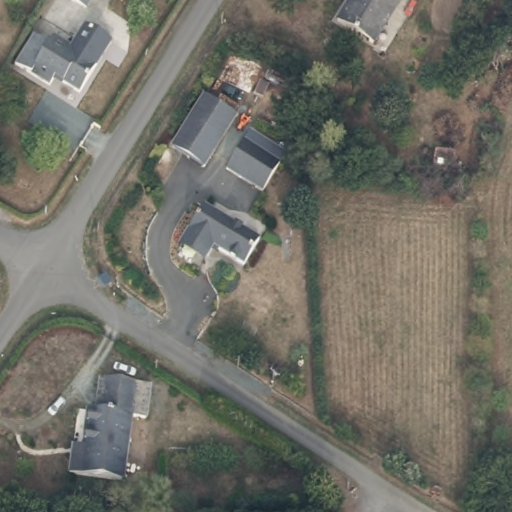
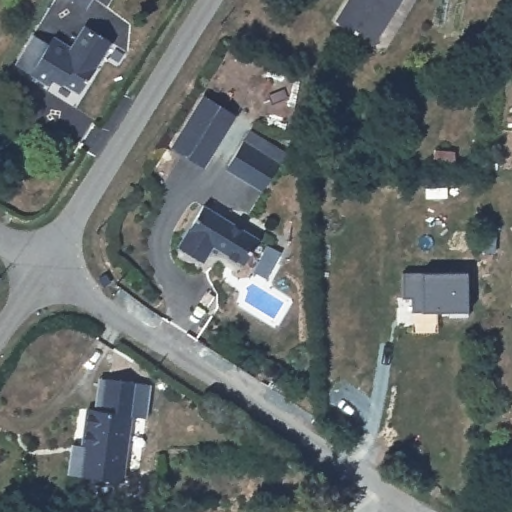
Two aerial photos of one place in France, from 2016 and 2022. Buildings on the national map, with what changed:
unchanged [(88,0),(82,10),(68,0),(88,0)]
unchanged [(334,25),(348,0),(394,0),(369,44),(334,25)]
unchanged [(52,44),(56,37),(73,47),(88,26),(114,42),(81,92),(57,77),(52,85),(17,62),(36,34),(52,44)]
unchanged [(203,91),(235,111),(203,162),(172,142),(203,91)]
unchanged [(263,187),(227,165),(244,139),(280,160),(263,187)]
unchanged [(246,257),(215,238),(206,254),(182,239),(205,200),(259,235),(246,257)]
new [(410,299),(402,298),(402,272),(421,272),(467,272),(468,312),(422,312),(410,313),(410,299)]
unchanged [(81,448),(85,403),(92,403),(94,372),(105,373),(141,378),(150,379),(146,420),(141,420),(130,419),(123,483),(66,478),(67,460),(68,448),(81,448)]

